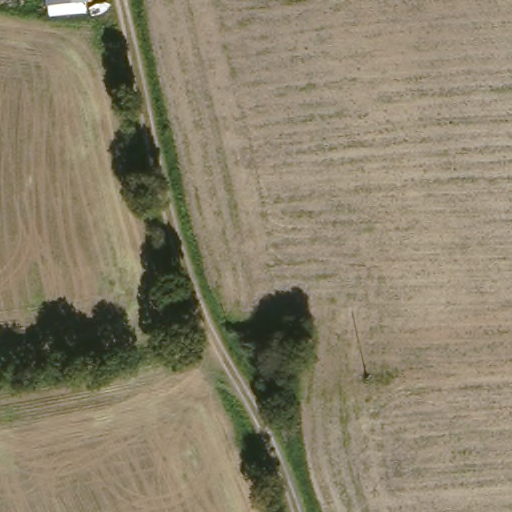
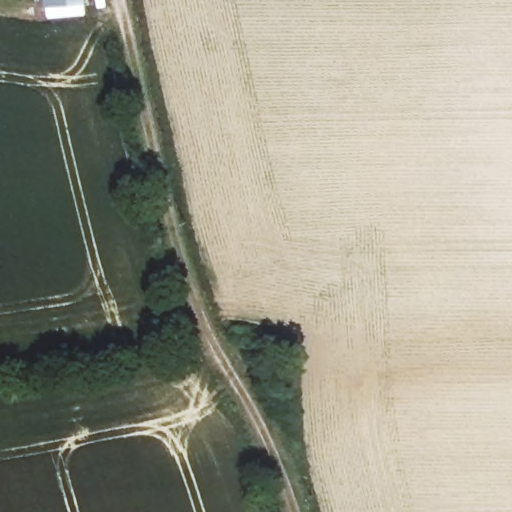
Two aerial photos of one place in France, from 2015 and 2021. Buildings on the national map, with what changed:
unchanged [(52,17),(51,7),(50,0),(88,0),(89,3),(90,13),(52,17)]

